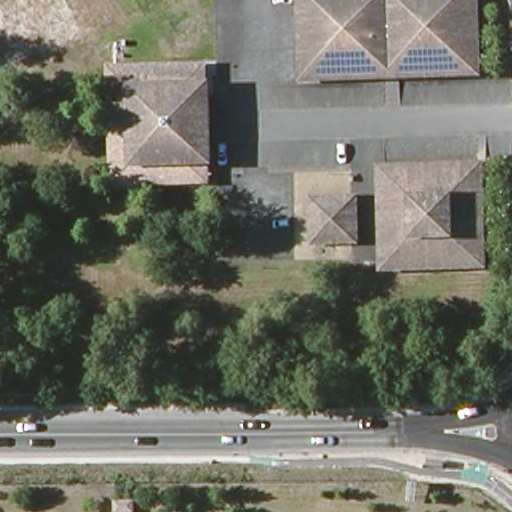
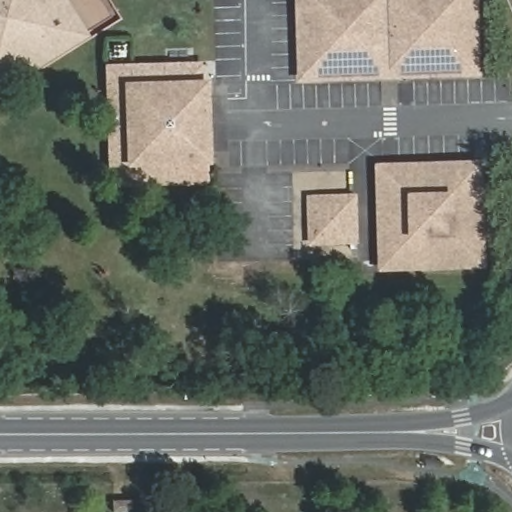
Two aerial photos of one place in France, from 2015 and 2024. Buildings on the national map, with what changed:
new [(109,0),(122,20),(0,95),(0,0),(109,0)]
unchanged [(307,0),(475,0),(476,71),(409,72),(380,73),(309,75),(307,0)]
unchanged [(106,66),(206,62),(209,83),(212,167),(210,186),(110,189),(106,66)]
unchanged [(386,177),(480,174),(481,267),(387,270),(386,177)]
unchanged [(354,203),(354,238),(317,237),(317,203),(354,203)]

